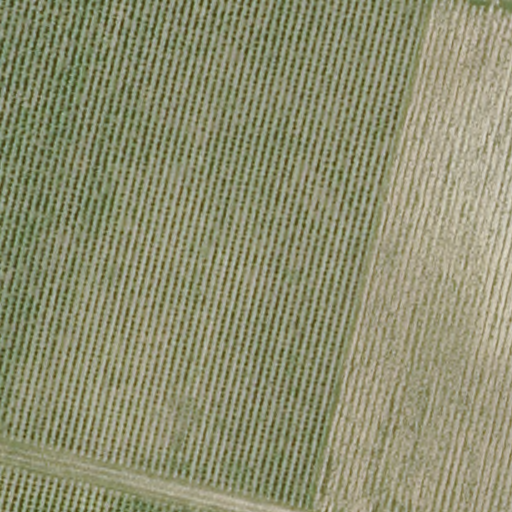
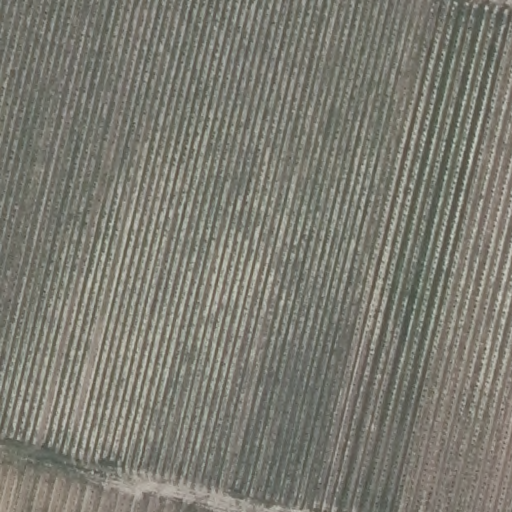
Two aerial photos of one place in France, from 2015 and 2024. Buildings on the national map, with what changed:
[]

